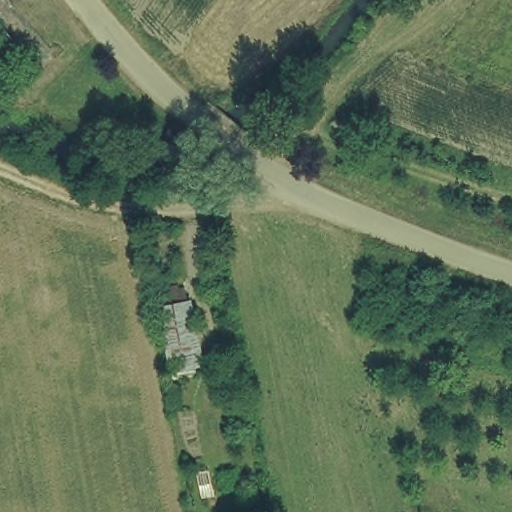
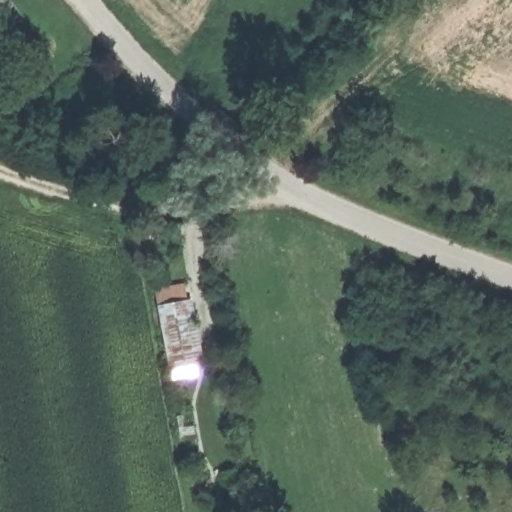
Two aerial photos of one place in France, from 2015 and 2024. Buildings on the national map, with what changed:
unchanged [(153,283),(191,281),(210,364),(168,370),(153,283)]
unchanged [(449,512),(411,512),(411,503),(449,512)]

